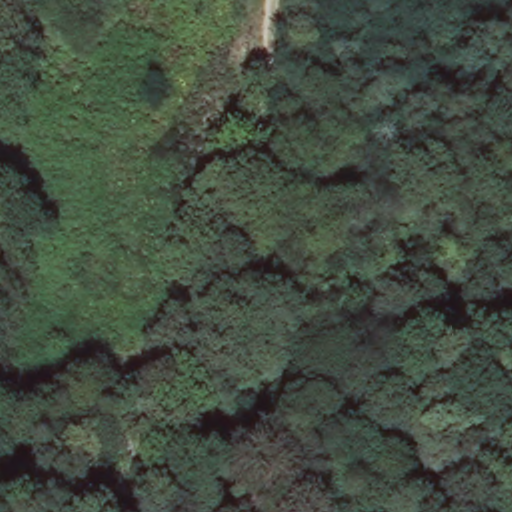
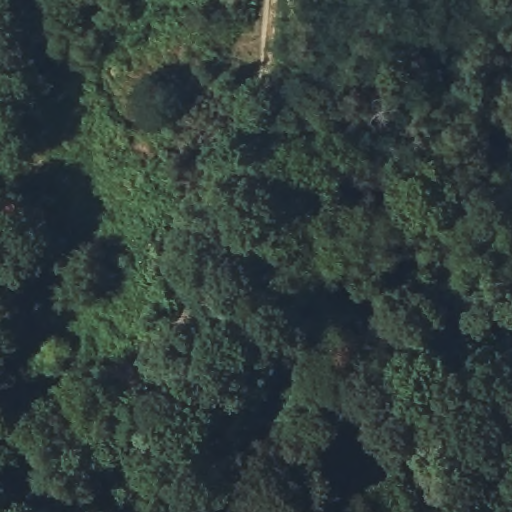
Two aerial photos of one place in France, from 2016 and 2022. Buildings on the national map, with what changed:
unchanged [(146,429),(191,434),(187,473),(140,469),(146,429)]

